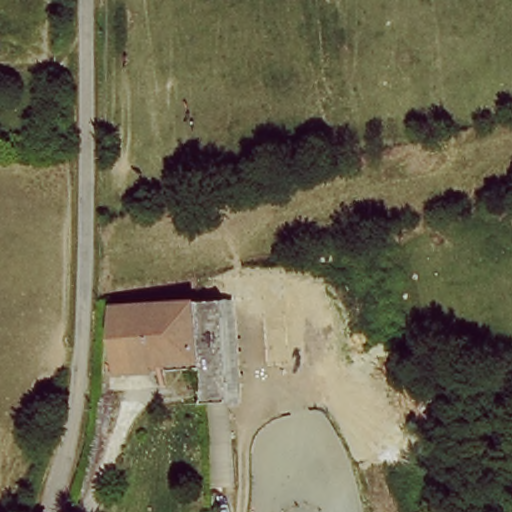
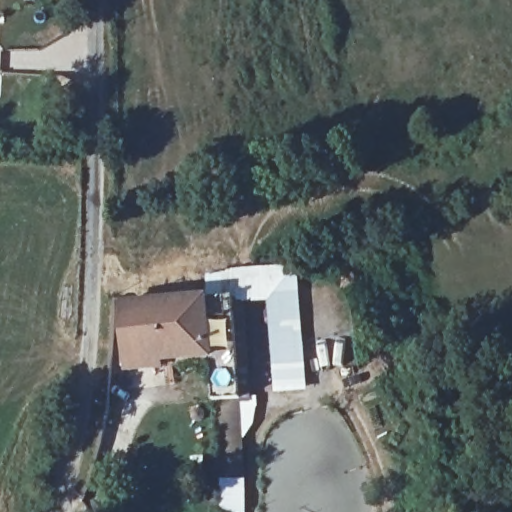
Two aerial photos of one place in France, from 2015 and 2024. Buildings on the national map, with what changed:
new [(271,298),(285,287),(300,283),(308,390),(273,395),(268,300),(271,298)]
unchanged [(125,312),(235,302),(244,400),(218,403),(214,365),(128,373),(125,312)]

